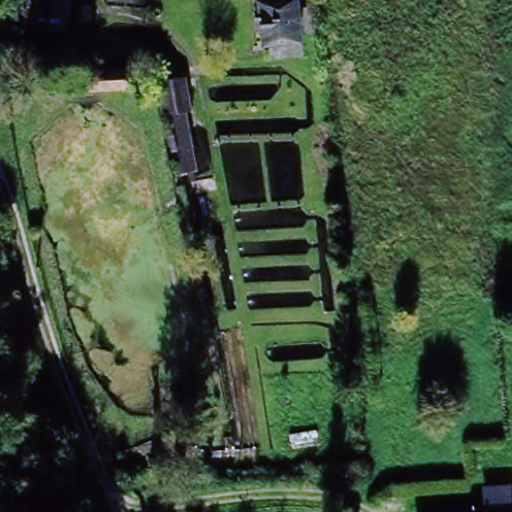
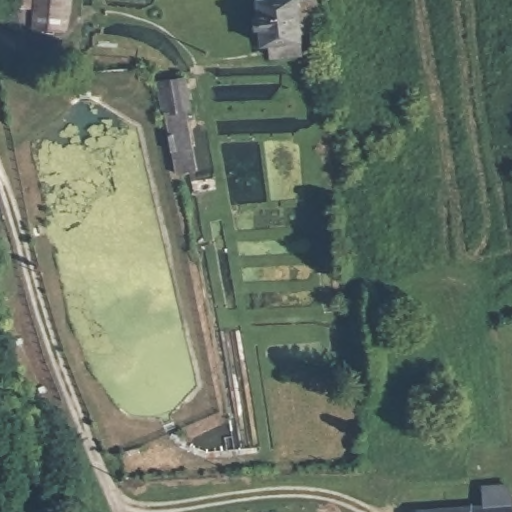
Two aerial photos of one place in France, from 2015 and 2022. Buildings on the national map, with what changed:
unchanged [(30,34),(32,10),(7,9),(6,0),(73,0),(70,39),(30,34)]
unchanged [(260,45),(257,0),(261,0),(299,0),(304,44),(303,57),(270,59),(268,44),(260,45)]
unchanged [(192,113),(187,113),(197,170),(175,174),(159,79),(145,81),(145,94),(137,94),(136,88),(91,89),(92,65),(166,60),(167,78),(187,75),(192,113)]
unchanged [(0,216),(0,209),(2,216),(0,216)]
unchanged [(414,511),(512,504),(512,512),(414,512),(414,511)]

